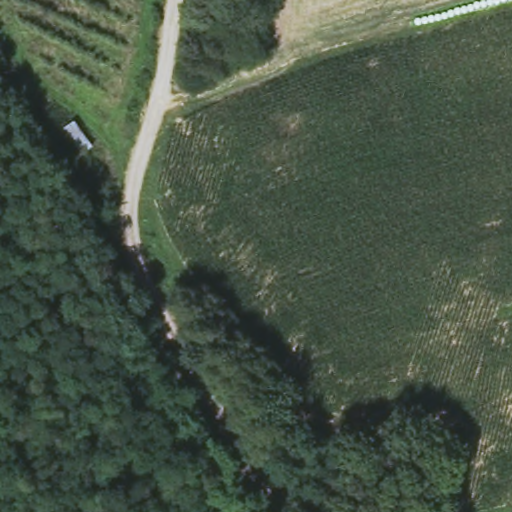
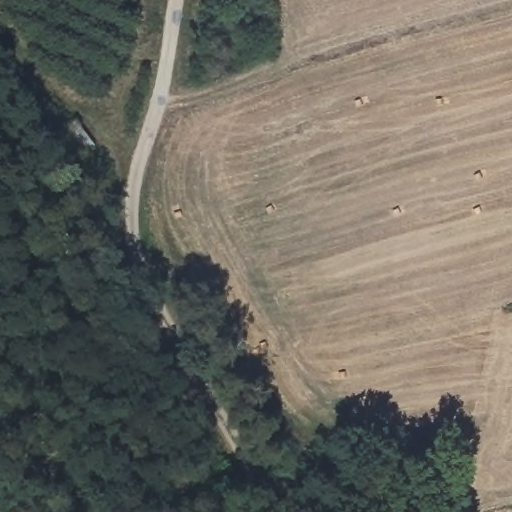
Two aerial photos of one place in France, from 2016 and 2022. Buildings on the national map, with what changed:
unchanged [(66,125),(77,119),(97,149),(86,152),(66,125)]

